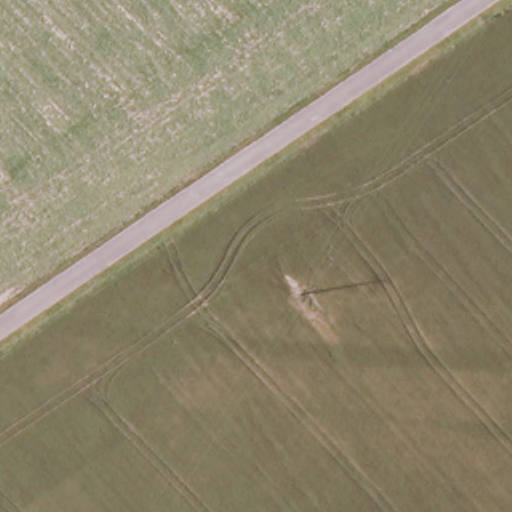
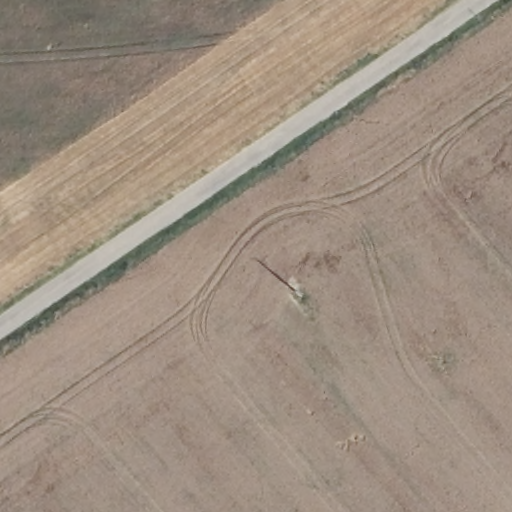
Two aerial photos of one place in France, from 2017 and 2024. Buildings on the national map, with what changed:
[]

